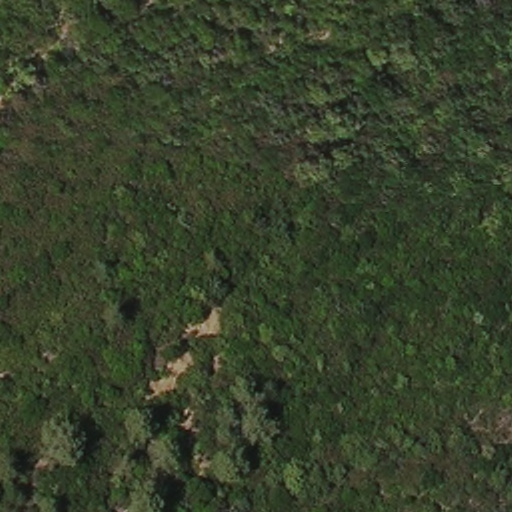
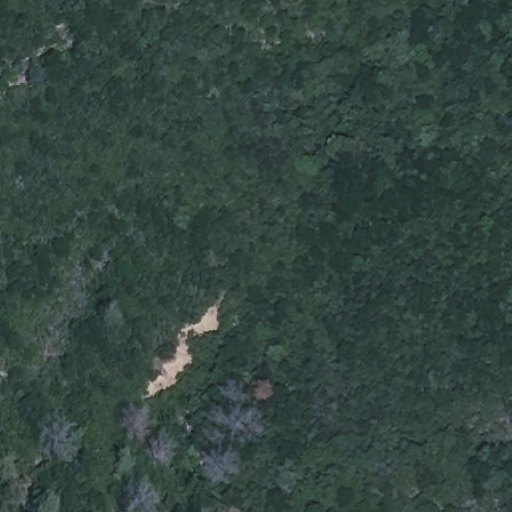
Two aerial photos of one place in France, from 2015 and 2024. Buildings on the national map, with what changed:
[]

